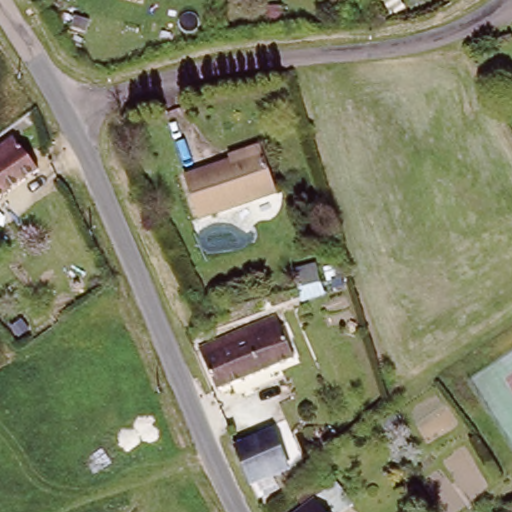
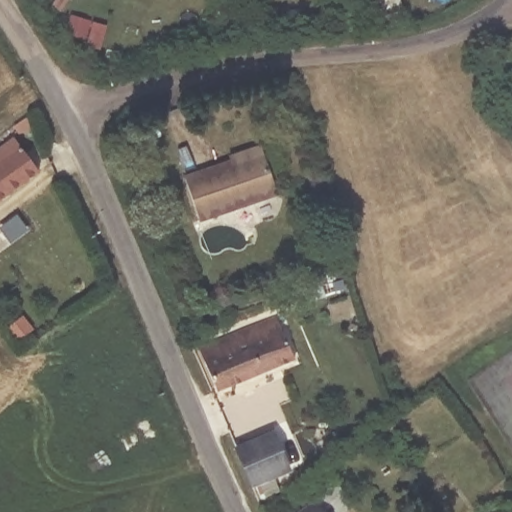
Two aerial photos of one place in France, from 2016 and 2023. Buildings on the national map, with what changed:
unchanged [(44,167),(0,200),(0,151),(20,136),(44,167)]
unchanged [(221,157),(251,141),(254,146),(275,185),(204,224),(182,185),(224,162),(221,157)]
unchanged [(307,263),(316,280),(295,291),(287,274),(307,263)]
unchanged [(274,315),(276,321),(293,356),(227,389),(209,346),(274,315)]
unchanged [(273,432),(288,466),(253,483),(237,448),(273,432)]
unchanged [(305,506),(291,490),(314,470),(327,487),(333,482),(335,482),(350,503),(348,504),(339,512),(297,512),(305,506)]

